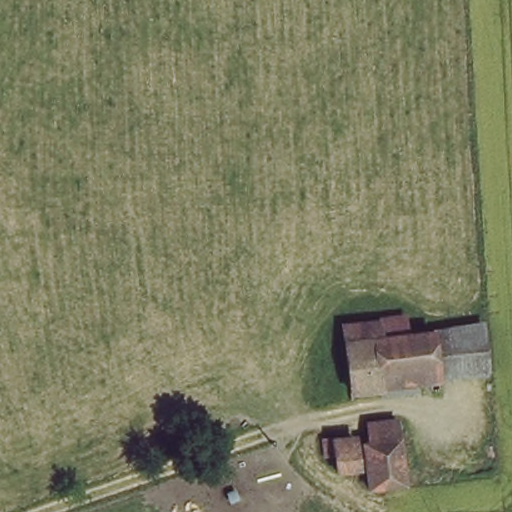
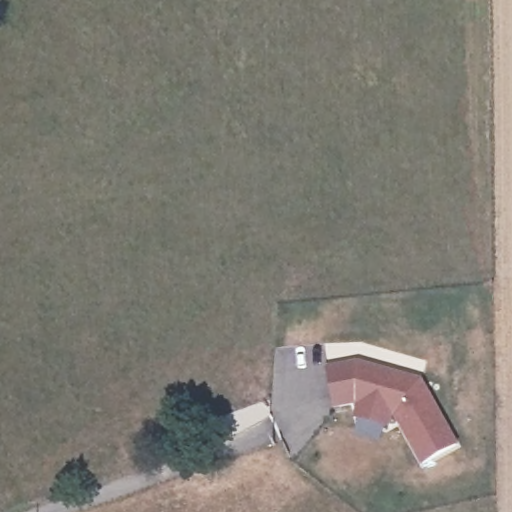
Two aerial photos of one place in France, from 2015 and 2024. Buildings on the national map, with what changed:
demolished [(405,355),(457,350),(460,355),(512,350),(512,375),(445,383),(445,390),(356,400),(351,347),(401,341),(405,355)]
new [(395,417),(390,429),(353,420),(356,406),(335,410),(326,370),(358,362),(422,381),(458,446),(422,466),(395,417)]
demolished [(418,490),(371,496),(365,428),(410,423),(418,490)]
demolished [(361,477),(340,479),(338,460),(359,457),(361,477)]

